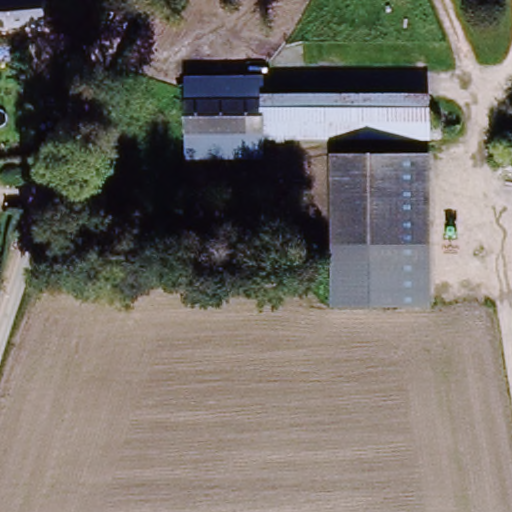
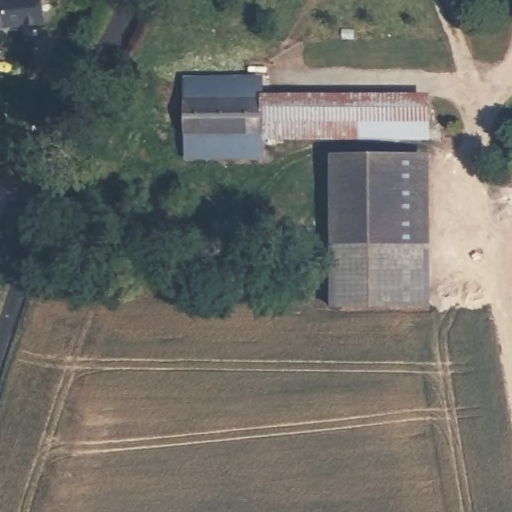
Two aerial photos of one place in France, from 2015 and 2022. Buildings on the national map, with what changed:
unchanged [(48,27),(0,31),(0,0),(46,0),(48,27)]
unchanged [(185,90),(259,83),(260,97),(260,113),(185,118),(185,90)]
unchanged [(435,87),(436,134),(261,139),(260,113),(260,97),(435,87)]
unchanged [(37,99),(55,111),(38,142),(19,132),(37,99)]
unchanged [(185,118),(260,113),(261,139),(187,143),(185,118)]
unchanged [(187,143),(261,139),(261,147),(262,157),(187,162),(187,147),(187,143)]
unchanged [(429,307),(330,304),(331,157),(429,161),(429,307)]

